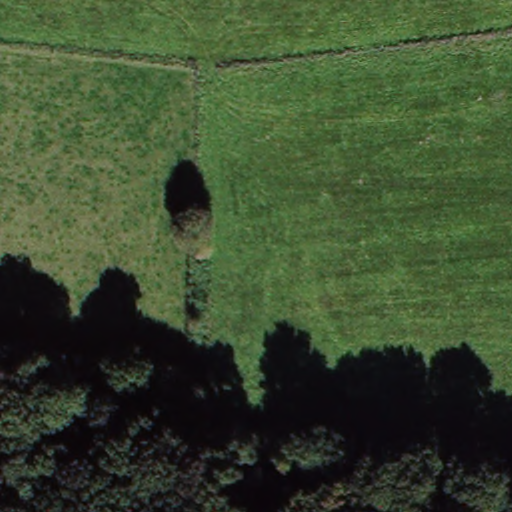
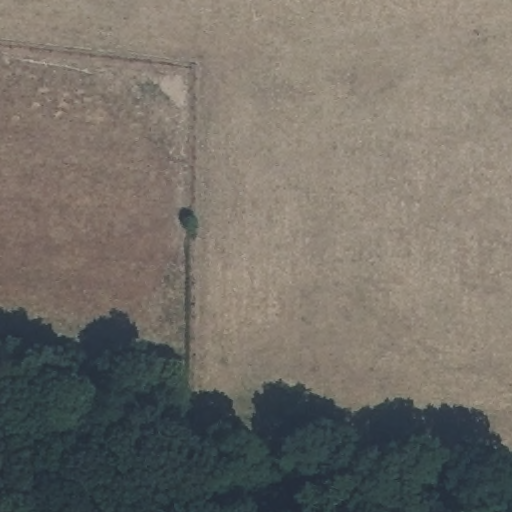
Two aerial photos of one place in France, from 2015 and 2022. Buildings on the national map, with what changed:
[]

